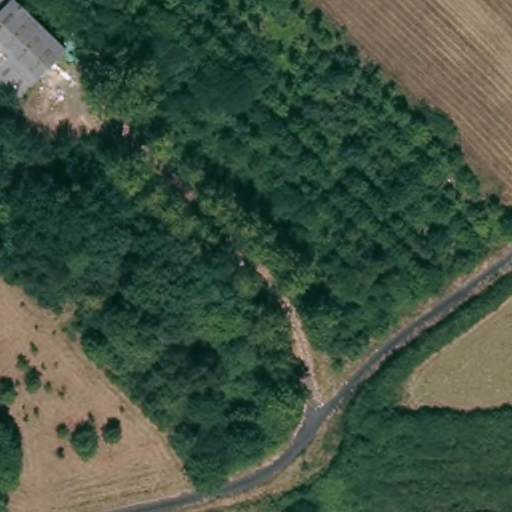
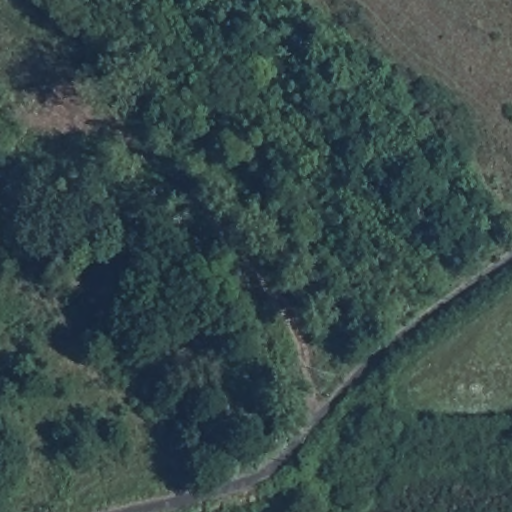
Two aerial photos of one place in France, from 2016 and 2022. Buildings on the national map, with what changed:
demolished [(10,0),(15,4),(53,41),(62,50),(13,103),(0,91),(0,0),(10,0)]
demolished [(49,0),(72,20),(53,41),(15,4),(18,0),(49,0)]

